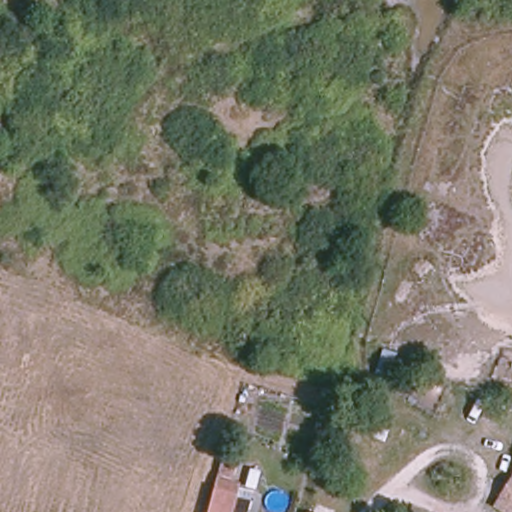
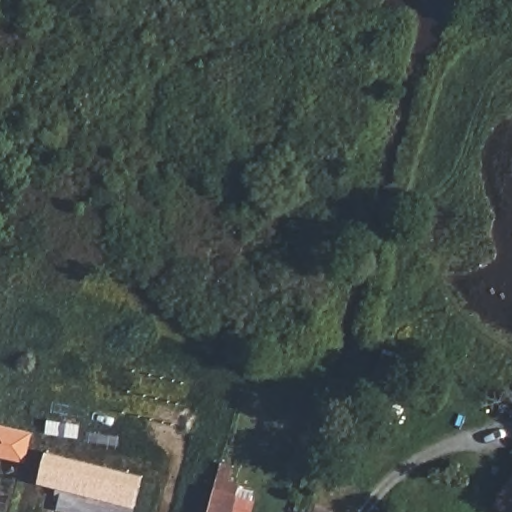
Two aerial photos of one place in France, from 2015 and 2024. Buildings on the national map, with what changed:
new [(26,462),(0,456),(0,424),(34,432),(26,462)]
new [(39,484),(47,451),(144,476),(136,508),(39,484)]
unchanged [(489,506),(512,471),(512,512),(498,512),(489,506)]
unchanged [(240,484),(233,512),(211,512),(221,477),(240,484)]

